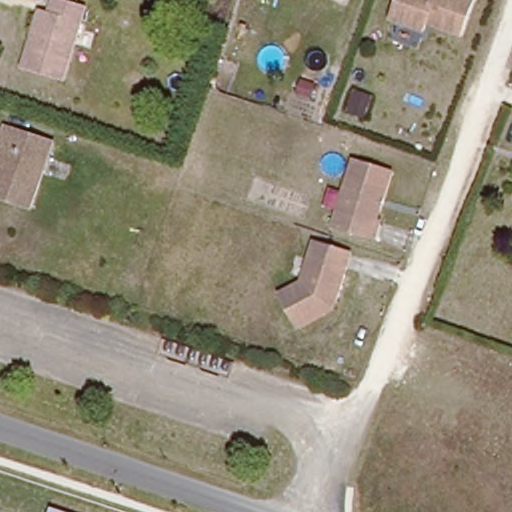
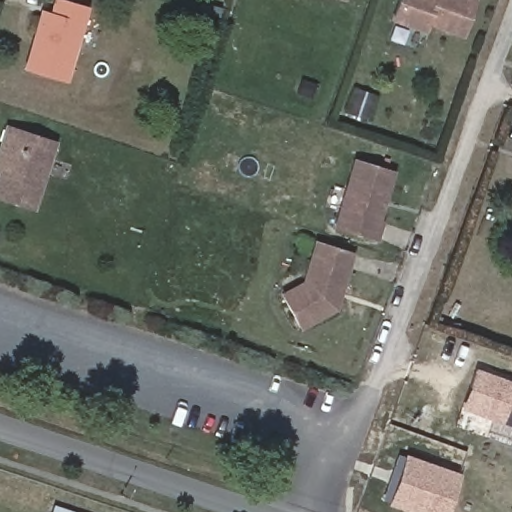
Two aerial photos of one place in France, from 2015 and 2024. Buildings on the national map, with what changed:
unchanged [(55,14),(60,0),(69,0),(91,7),(67,78),(30,66),(46,12),(55,14)]
unchanged [(400,0),(466,0),(471,2),(458,36),(425,26),(422,34),(391,23),(400,0)]
unchanged [(292,101),(296,86),(311,91),(306,105),(292,101)]
unchanged [(351,96),(364,100),(357,123),(345,118),(351,96)]
unchanged [(53,141),(33,206),(0,196),(0,173),(2,167),(0,166),(0,138),(4,127),(53,141)]
unchanged [(338,228),(357,161),(396,172),(380,224),(384,225),(380,241),(338,228)]
unchanged [(355,251),(337,308),(301,327),(283,294),(303,283),(317,241),(355,251)]
new [(467,388),(475,367),(512,380),(512,428),(485,418),(491,398),(467,388)]
new [(404,453),(461,473),(447,512),(407,512),(386,505),(404,453)]
unchanged [(49,506),(68,512),(47,512),(49,506)]

